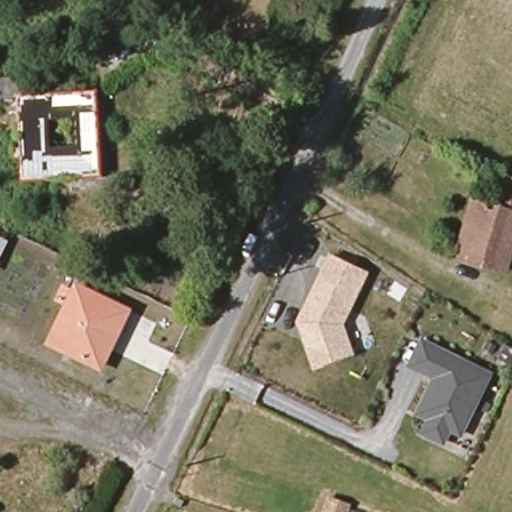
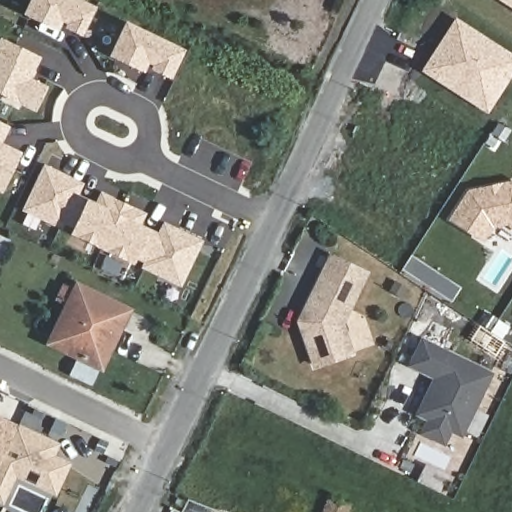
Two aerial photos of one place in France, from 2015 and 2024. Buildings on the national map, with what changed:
new [(40,0),(77,0),(101,12),(89,36),(74,29),(76,24),(67,20),(62,29),(33,14),(40,0)]
new [(512,8),(499,0),(512,0),(512,8)]
new [(456,17),(512,53),(512,75),(486,114),(421,71),(456,17)]
new [(132,29),(187,54),(175,79),(160,71),(162,67),(153,62),(148,71),(119,57),(132,29)]
new [(34,60),(24,80),(41,88),(31,107),(0,92),(0,42),(34,60)]
demolished [(19,96),(0,97),(0,79),(39,77),(41,97),(95,94),(99,173),(25,179),(19,96)]
new [(2,130),(0,135),(0,128),(2,130)]
new [(16,157),(0,189),(0,148),(16,157)]
new [(60,227),(25,209),(45,170),(72,183),(66,194),(75,197),(60,227)]
demolished [(460,253),(473,202),(497,207),(506,179),(512,181),(512,237),(504,265),(460,253)]
new [(512,181),(512,230),(506,226),(492,229),(483,243),(448,219),(468,190),(512,181)]
new [(75,198),(95,207),(100,197),(119,206),(101,244),(74,231),(76,226),(64,221),(75,198)]
new [(137,215),(132,226),(153,236),(142,257),(130,252),(128,257),(101,244),(119,207),(137,215)]
new [(161,240),(167,229),(193,242),(174,282),(139,266),(153,236),(161,240)]
unchanged [(311,368),(296,320),(330,252),(370,272),(344,325),(356,356),(311,368)]
unchanged [(101,367),(49,342),(67,305),(54,298),(62,286),(73,291),(76,284),(128,308),(101,367)]
demolished [(512,342),(497,333),(511,309),(512,310),(512,342)]
unchanged [(421,337),(493,371),(464,437),(451,432),(445,446),(418,435),(425,419),(414,415),(431,378),(407,367),(421,337)]
new [(59,443),(54,456),(70,462),(56,496),(14,477),(3,505),(0,503),(0,416),(59,443)]
unchanged [(344,512),(326,512),(328,506),(344,512)]

